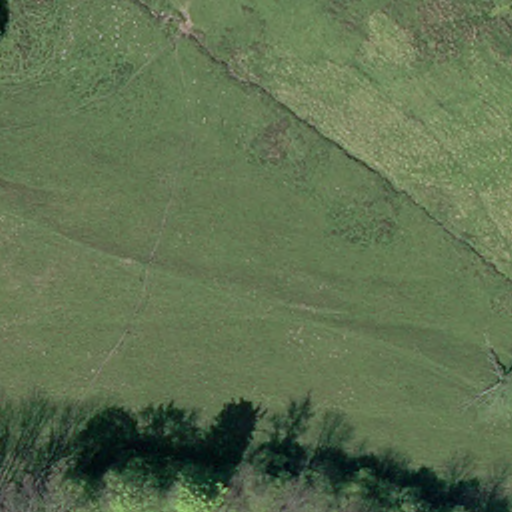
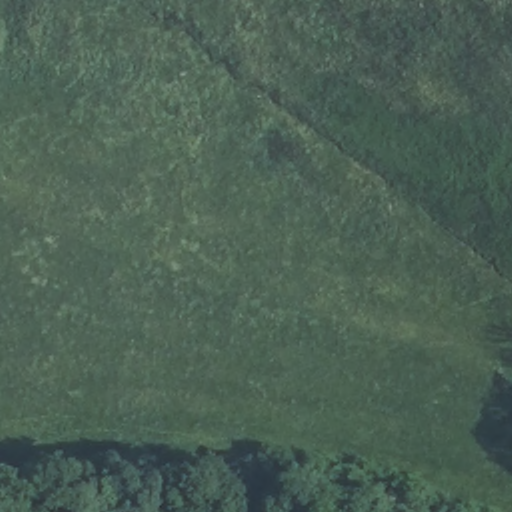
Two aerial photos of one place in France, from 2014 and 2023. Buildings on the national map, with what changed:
[]

